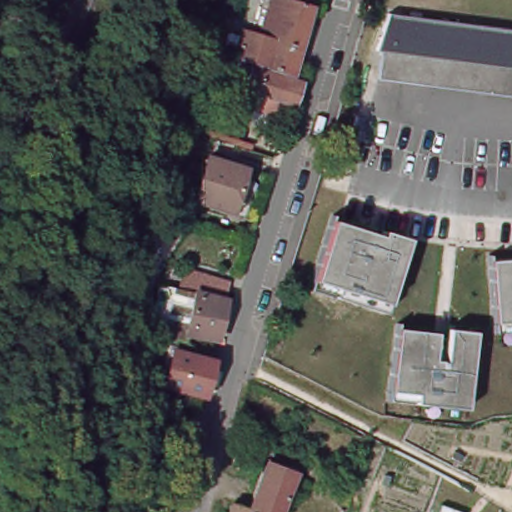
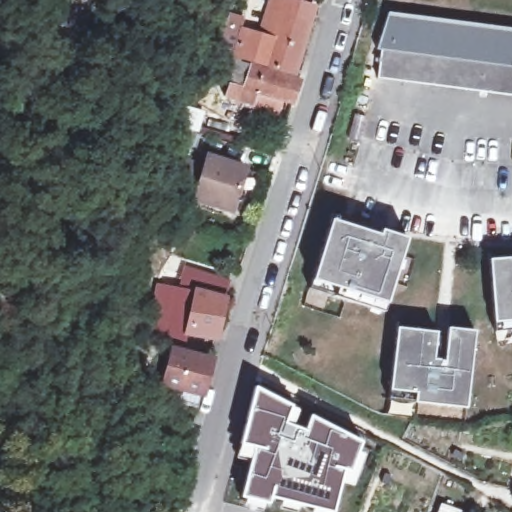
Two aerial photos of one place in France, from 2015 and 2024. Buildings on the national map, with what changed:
unchanged [(305,74),(304,76),(237,53),(255,0),(284,0),(320,11),(300,71),(305,74)]
unchanged [(390,10),(512,26),(512,102),(375,91),(390,10)]
unchanged [(300,109),(266,98),(261,108),(251,105),(254,94),(250,93),(236,86),(240,76),(227,71),(232,56),(245,60),(242,68),(257,74),(305,89),(300,109)]
unchanged [(201,168),(176,159),(187,124),(194,104),(218,114),(215,124),(212,133),(209,143),(201,168)]
unchanged [(222,164),(244,172),(259,176),(247,218),(230,214),(213,209),(209,221),(187,217),(200,171),(218,176),(222,164)]
unchanged [(385,303),(309,277),(330,215),(403,242),(385,303)]
unchanged [(482,253),(512,251),(512,336),(489,337),(482,253)]
unchanged [(165,282),(199,289),(189,344),(155,337),(165,282)]
unchanged [(229,294),(217,349),(189,344),(199,289),(229,294)]
unchanged [(467,409),(410,407),(410,389),(389,387),(394,323),(432,326),(430,359),(442,359),(442,325),(472,329),(467,409)]
unchanged [(197,414),(195,417),(193,416),(179,412),(182,399),(184,397),(165,391),(172,359),(210,370),(200,402),(199,405),(197,414)]
new [(289,404),(284,419),(304,429),(308,414),(360,441),(349,471),(342,469),(331,511),(270,495),(267,504),(235,495),(249,446),(240,444),(254,389),(289,404)]
demolished [(242,500),(257,506),(275,459),(304,469),(287,512),(237,512),(242,500)]
new [(466,512),(437,512),(440,503),(466,512)]

